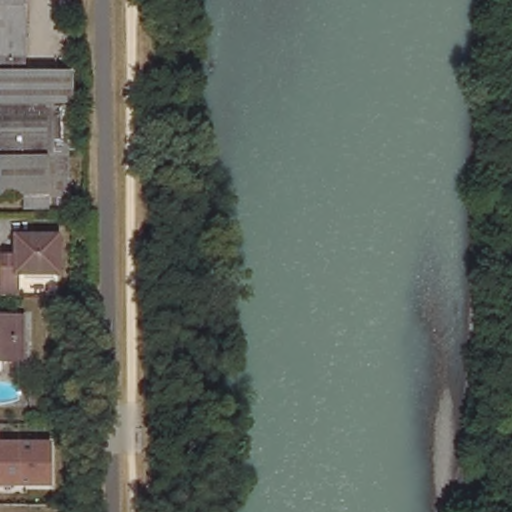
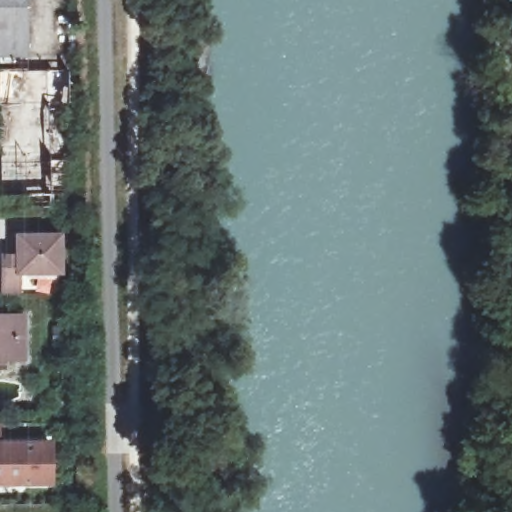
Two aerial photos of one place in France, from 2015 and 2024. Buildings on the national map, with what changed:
unchanged [(0,0),(29,0),(30,56),(0,56),(0,0)]
unchanged [(0,71),(70,71),(70,89),(70,93),(0,94),(0,71)]
unchanged [(54,195),(53,195),(53,207),(28,208),(27,195),(3,195),(2,154),(0,94),(70,93),(70,101),(70,119),(78,119),(78,149),(71,150),(71,152),(72,194),(54,195)]
unchanged [(61,236),(62,273),(18,273),(18,294),(3,294),(3,257),(18,257),(18,237),(61,236)]
unchanged [(0,357),(0,316),(25,316),(25,335),(25,357),(18,357),(0,357)]
unchanged [(50,486),(22,486),(22,482),(0,482),(0,448),(50,447),(50,486)]

